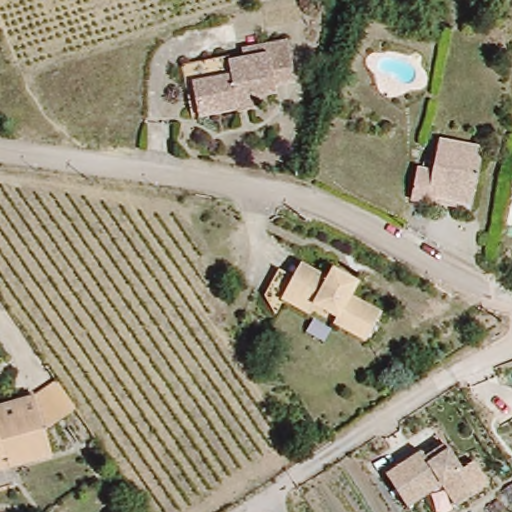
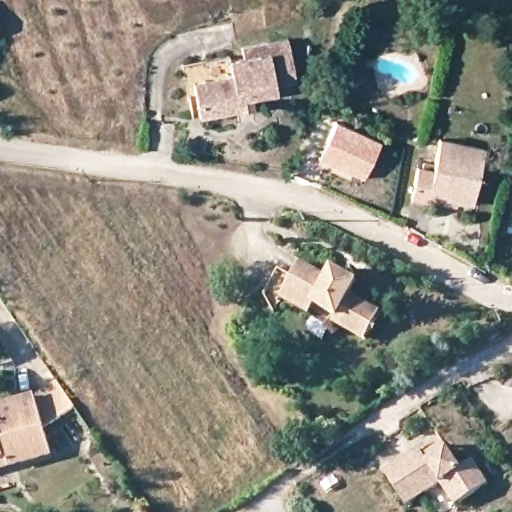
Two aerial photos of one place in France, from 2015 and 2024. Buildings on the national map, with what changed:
unchanged [(230,52),(232,59),(248,55),(245,42),(290,34),(296,76),(275,81),(276,87),(252,92),(254,104),(195,114),(185,60),(230,52)]
new [(381,144),(365,180),(317,159),(335,122),(381,144)]
unchanged [(421,166),(425,166),(425,162),(435,164),(442,137),(486,147),(473,202),(431,194),(430,201),(417,199),(413,198),(421,166)]
unchanged [(262,292),(276,267),(291,276),(299,263),(329,280),(335,270),(357,282),(351,294),(348,299),(377,317),(363,341),(331,322),(335,316),(315,304),(310,312),(283,297),(273,312),(262,292)]
unchanged [(26,393),(41,381),(61,411),(40,424),(48,448),(6,463),(0,465),(0,403),(26,393)]
unchanged [(430,457),(449,447),(462,469),(473,462),(487,487),(455,510),(441,487),(409,512),(405,512),(386,475),(423,450),(430,457)]
unchanged [(158,512),(142,512),(153,505),(158,512)]

